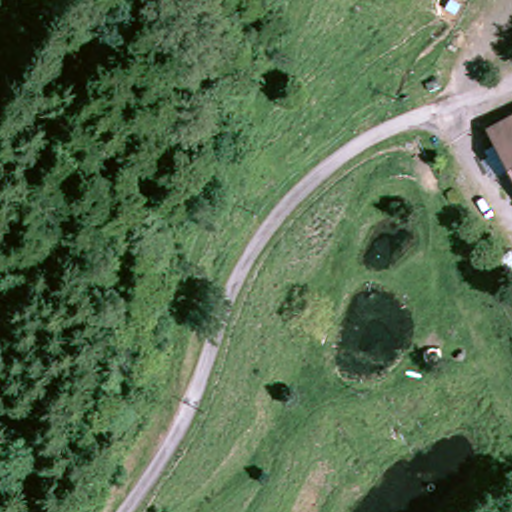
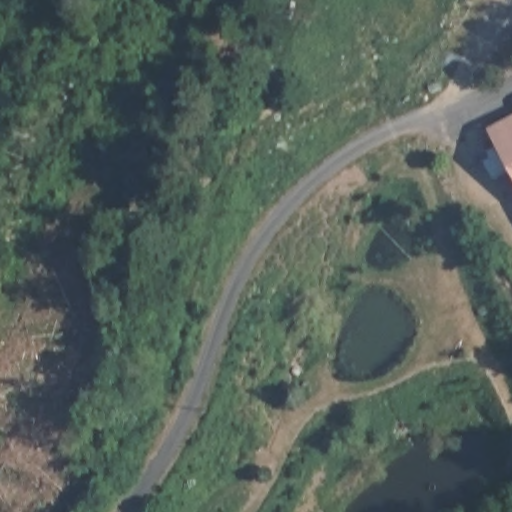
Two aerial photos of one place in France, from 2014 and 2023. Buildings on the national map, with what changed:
unchanged [(512,110),(512,161),(490,121),(512,110)]

